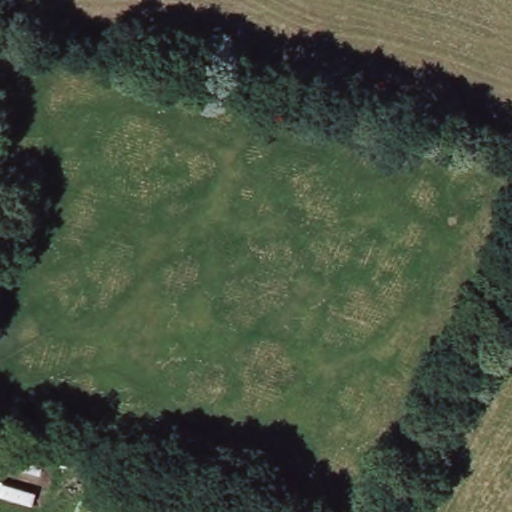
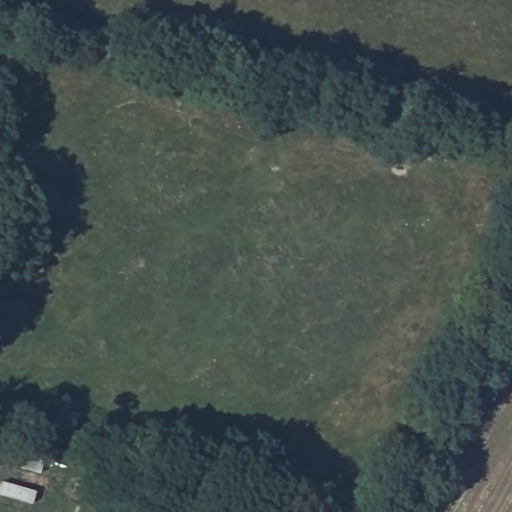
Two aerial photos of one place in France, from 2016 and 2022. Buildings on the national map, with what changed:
[]

